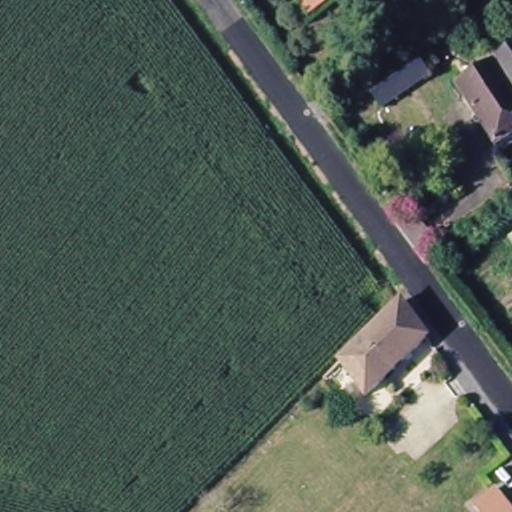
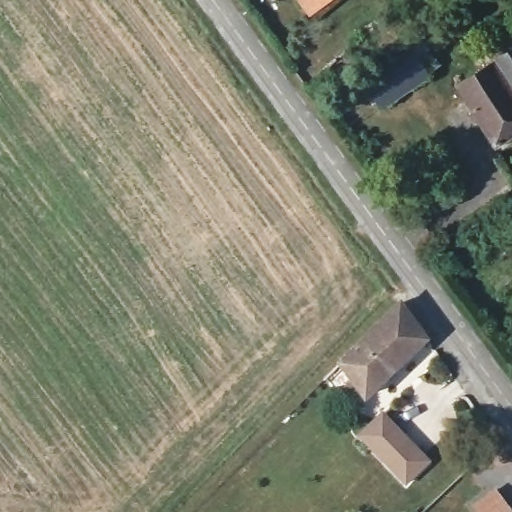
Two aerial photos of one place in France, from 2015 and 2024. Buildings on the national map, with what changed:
unchanged [(317,19),(302,1),(305,0),(341,0),(342,2),(317,19)]
unchanged [(512,51),(512,137),(491,150),(452,89),(512,51)]
unchanged [(364,86),(396,63),(411,53),(429,76),(412,89),(381,111),(364,86)]
unchanged [(365,390),(338,364),(401,303),(427,337),(365,390)]
new [(382,411),(432,460),(407,485),(357,434),(382,411)]
unchanged [(475,506),(494,492),(502,501),(505,498),(512,507),(512,512),(480,512),(475,506)]

